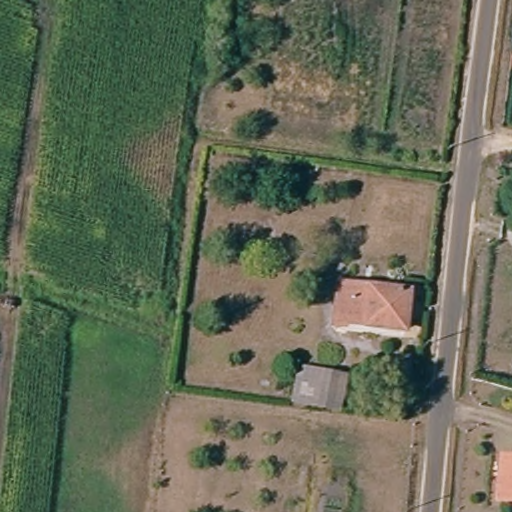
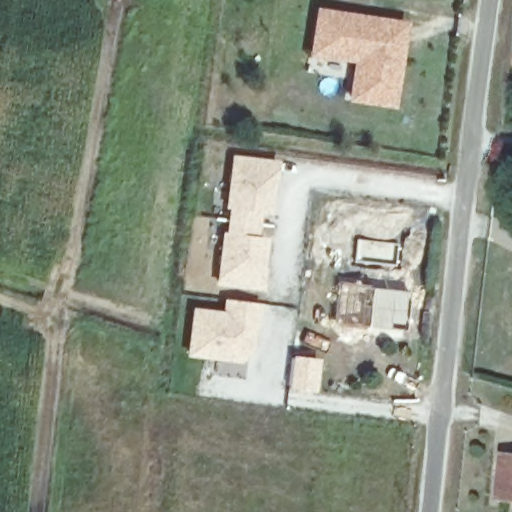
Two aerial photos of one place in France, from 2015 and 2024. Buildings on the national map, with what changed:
new [(408,21),(395,109),(346,102),(352,60),(308,55),(315,5),(408,21)]
new [(278,159),(271,213),(262,210),(258,234),(269,236),(263,290),(214,284),(220,231),(225,232),(228,209),(223,208),(230,154),(278,159)]
unchanged [(368,323),(335,320),(339,288),(373,289),(368,323)]
unchanged [(373,289),(403,291),(401,325),(368,323),(373,289)]
new [(222,310),(222,297),(262,303),(259,329),(254,328),(252,352),(239,363),(186,356),(191,306),(222,310)]
new [(321,359),(316,391),(289,389),(292,355),(321,359)]
demolished [(342,416),(307,409),(314,371),(351,373),(342,416)]
unchanged [(497,502),(499,460),(499,457),(512,457),(512,502),(497,502)]

